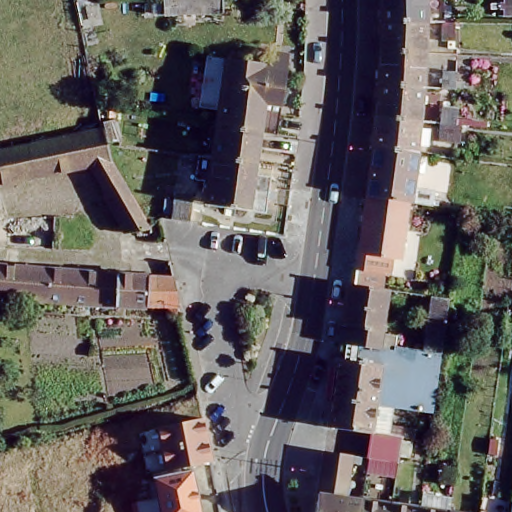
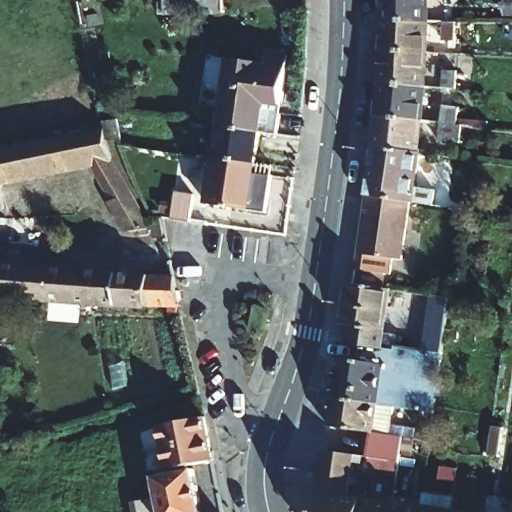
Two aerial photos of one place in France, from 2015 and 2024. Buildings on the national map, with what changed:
unchanged [(218,10),(194,10),(186,10),(183,11),(173,10),(173,0),(218,0),(218,10)]
unchanged [(377,0),(421,0),(421,20),(378,19),(377,0)]
unchanged [(378,19),(421,20),(420,51),(376,50),(378,19)]
unchanged [(463,38),(447,37),(447,25),(463,25),(463,38)]
unchanged [(375,81),(376,50),(420,51),(418,85),(375,81)]
unchanged [(223,56),(269,63),(271,51),(284,53),(276,101),(258,98),(256,112),(274,114),(271,132),(253,129),(211,123),(223,56)]
unchanged [(371,114),(375,81),(418,85),(414,118),(371,114)]
unchanged [(390,147),(369,144),(371,114),(414,118),(412,151),(390,147)]
unchanged [(253,129),(249,161),(207,155),(211,123),(253,129)]
unchanged [(100,139),(103,147),(105,158),(115,175),(144,224),(145,226),(120,230),(99,194),(103,192),(87,164),(0,182),(0,147),(96,126),(100,139)]
unchanged [(407,187),(428,190),(426,204),(404,201),(397,199),(361,194),(369,144),(390,147),(412,151),(407,187)]
unchanged [(249,161),(246,173),(264,176),(259,211),(200,203),(207,155),(249,161)]
unchanged [(397,199),(404,201),(396,259),(387,258),(384,274),(351,269),(361,194),(397,199)]
unchanged [(177,222),(181,195),(199,198),(195,225),(177,222)]
unchanged [(42,266),(104,271),(168,274),(170,288),(174,306),(133,304),(116,304),(93,302),(64,300),(28,297),(0,295),(0,263),(42,266)]
unchanged [(374,349),(353,346),(340,344),(344,324),(337,323),(344,283),(384,288),(374,349)]
unchanged [(351,359),(353,346),(374,349),(388,351),(389,346),(410,349),(419,350),(427,294),(444,297),(436,352),(429,400),(428,410),(388,405),(371,402),(327,396),(333,356),(351,359)]
unchanged [(360,455),(361,444),(364,431),(323,425),(327,396),(371,402),(388,405),(384,433),(396,435),(404,437),(403,452),(394,451),(393,459),(391,475),(361,471),(363,456),(360,455)]
unchanged [(174,464),(160,467),(156,447),(153,425),(197,417),(201,438),(205,459),(174,464)]
unchanged [(319,449),(346,453),(341,496),(357,498),(355,512),(310,512),(316,471),(319,449)]
unchanged [(148,476),(187,468),(195,512),(137,512),(154,509),(148,476)]
unchanged [(459,485),(447,483),(449,468),(461,469),(459,485)]
unchanged [(417,487),(447,491),(444,510),(444,512),(413,512),(414,507),(417,487)]
unchanged [(387,502),(385,512),(355,512),(357,498),(387,502)]
unchanged [(414,507),(413,512),(385,512),(387,502),(414,507)]
unchanged [(506,503),(512,504),(512,512),(504,512),(506,503)]
unchanged [(456,512),(444,512),(444,510),(456,512)]

